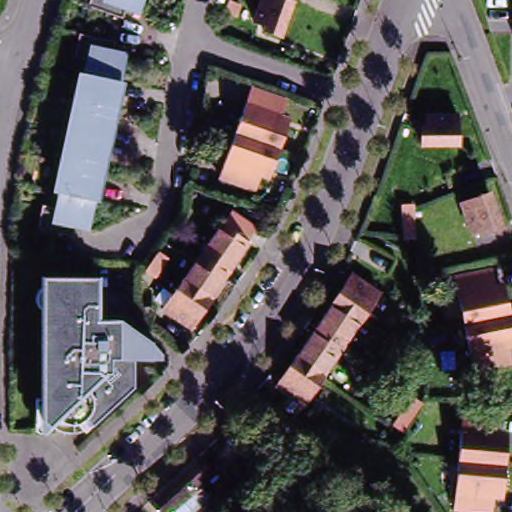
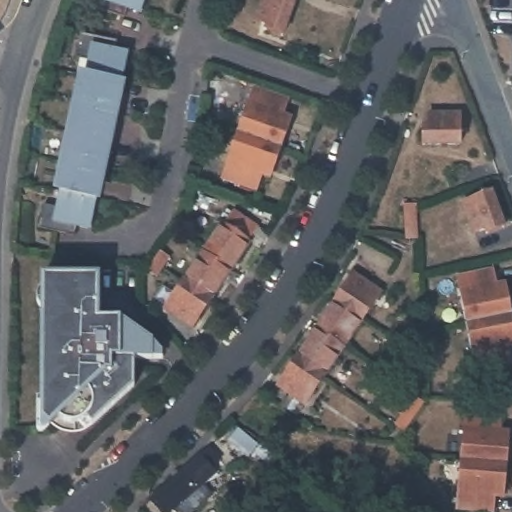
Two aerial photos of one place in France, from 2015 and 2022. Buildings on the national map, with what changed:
unchanged [(130,3),(125,13),(91,0),(147,0),(144,8),(130,3)]
unchanged [(282,38),(265,32),(266,27),(256,24),(264,0),(288,0),(294,2),(282,38)]
unchanged [(242,6),(237,19),(225,14),(230,1),(242,6)]
unchanged [(85,234),(83,243),(65,240),(48,236),(52,213),(66,215),(97,69),(84,66),(89,43),(124,51),(122,60),(137,64),(134,79),(130,80),(102,220),(105,220),(100,237),(98,237),(85,234)]
unchanged [(294,99),(285,122),(293,125),(278,168),(270,165),(261,189),(225,175),(256,85),(294,99)]
unchanged [(463,117),(463,147),(427,147),(427,128),(431,128),(431,117),(463,117)]
unchanged [(479,232),(478,228),(471,231),(470,226),(470,225),(461,201),(489,190),(502,225),(485,231),(485,230),(485,231),(479,232)]
unchanged [(415,206),(417,241),(405,242),(402,207),(415,206)]
unchanged [(230,218),(257,236),(246,251),(247,252),(229,280),(211,269),(200,261),(219,233),(230,218)]
unchanged [(159,255),(167,261),(154,279),(145,273),(159,255)]
unchanged [(211,269),(229,280),(210,308),(181,288),(200,261),(211,269)]
unchanged [(510,290),(512,300),(512,336),(511,337),(512,339),(512,361),(480,368),(460,274),(496,267),(501,292),(510,290)]
unchanged [(76,274),(85,274),(85,275),(85,299),(85,316),(109,316),(128,328),(141,337),(145,354),(127,358),(132,385),(91,423),(87,425),(82,427),(71,429),(66,429),(61,428),(56,427),(51,425),(50,424),(47,426),(41,416),(41,381),(40,376),(40,274),(76,274)]
unchanged [(342,305),(361,277),(390,296),(371,324),(342,305)]
unchanged [(190,335),(162,316),(181,288),(210,308),(190,335)]
unchanged [(352,352),(325,332),(342,305),(371,324),(352,352)]
unchanged [(333,380),(305,360),(325,332),(352,352),(333,380)]
unchanged [(286,388),(305,360),(333,380),(315,408),(305,419),(291,409),(299,397),(286,388)]
unchanged [(401,417),(412,400),(421,407),(411,422),(402,436),(392,430),(401,417)]
unchanged [(499,441),(507,442),(506,451),(505,473),(458,468),(463,421),(501,425),(499,441)]
unchanged [(184,467),(210,441),(221,453),(212,462),(217,467),(187,496),(196,505),(189,512),(178,512),(174,508),(170,512),(168,512),(152,496),(184,467)]
unchanged [(492,503),(491,512),(453,512),(458,468),(505,473),(502,495),(501,504),(492,503)]

